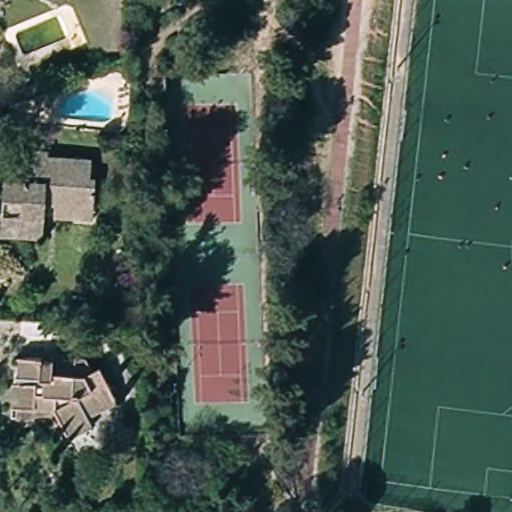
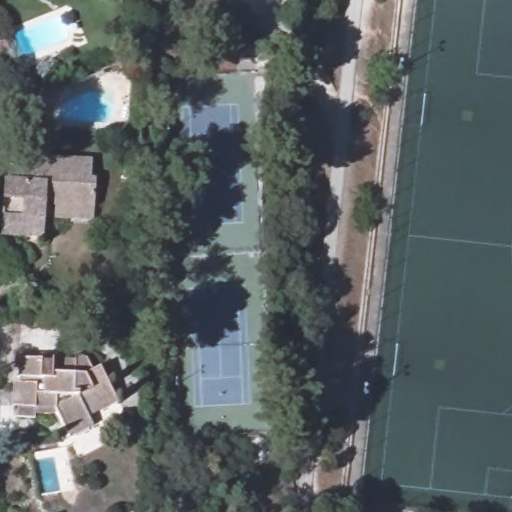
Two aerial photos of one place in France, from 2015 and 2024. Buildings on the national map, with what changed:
unchanged [(51,203),(41,202),(39,238),(0,235),(0,182),(8,182),(10,163),(28,164),(28,148),(43,149),(43,158),(70,159),(90,161),(88,181),(93,181),(90,209),(90,221),(51,218),(51,206),(51,203)]
unchanged [(68,433),(65,429),(50,405),(33,416),(33,423),(13,422),(15,359),(39,360),(39,363),(49,364),(50,361),(71,361),(71,357),(80,357),(88,368),(93,365),(109,392),(112,397),(85,414),(86,417),(88,420),(68,433)]

